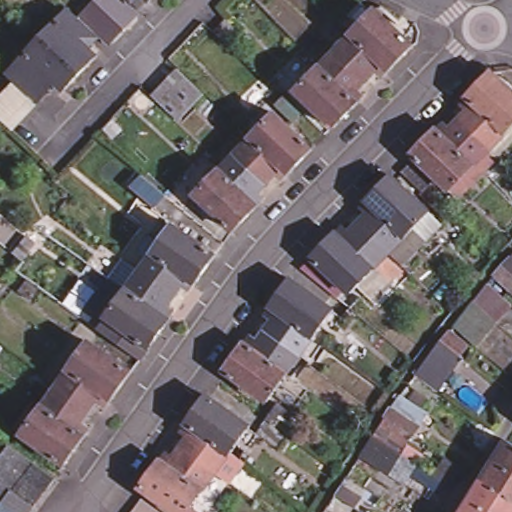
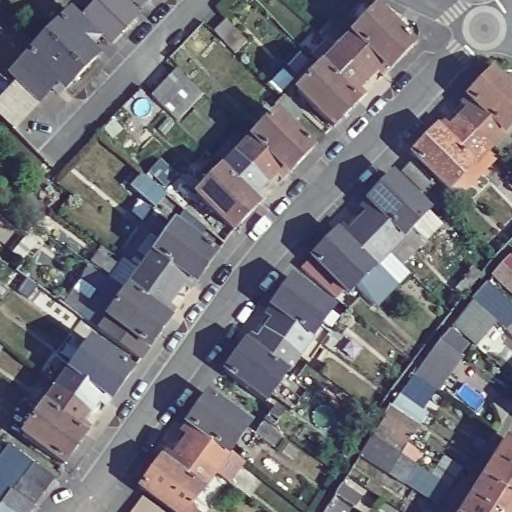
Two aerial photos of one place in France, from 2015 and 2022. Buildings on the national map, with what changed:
unchanged [(143,8),(134,1),(127,9),(116,0),(149,0),(143,8)]
unchanged [(71,4),(101,32),(93,40),(99,47),(83,64),(47,29),(71,4)]
unchanged [(373,7),(409,44),(384,69),(378,63),(363,78),(332,49),(373,7)]
unchanged [(226,20),(247,41),(234,57),(212,35),(226,20)]
unchanged [(11,65),(20,55),(46,28),(47,29),(83,64),(67,81),(59,73),(49,83),(41,92),(11,65)]
unchanged [(292,90),(332,49),(363,78),(346,94),(354,101),(329,125),(292,90)]
unchanged [(444,187),(407,152),(431,127),(438,133),(453,118),(469,101),(463,94),(487,69),(512,94),(512,117),(483,147),(490,153),(474,170),(452,193),(445,186),(444,187)]
unchanged [(174,72),(201,98),(188,111),(175,125),(148,100),(161,86),(174,72)]
unchanged [(5,85),(15,74),(38,96),(28,106),(15,120),(0,106),(0,90),(5,85)]
unchanged [(287,121),(269,105),(275,99),(279,94),(296,111),(287,121)]
unchanged [(272,111),(309,147),(283,173),(276,166),(261,182),(231,153),(272,111)]
unchanged [(191,193),(231,153),(261,182),(246,198),(253,204),(228,228),(191,193)]
unchanged [(419,184),(416,188),(395,169),(407,158),(427,176),(419,184)]
unchanged [(386,174),(423,210),(384,250),(354,221),(369,205),(363,198),(386,174)]
unchanged [(166,199),(156,213),(131,192),(141,178),(166,199)]
unchanged [(298,265),(307,256),(331,230),(339,237),(354,221),(384,250),(345,291),(339,285),(331,294),(298,265)]
unchanged [(108,316),(127,289),(116,283),(108,277),(123,257),(128,261),(131,263),(141,270),(174,223),(216,253),(194,282),(186,276),(174,294),(161,312),(169,318),(148,346),(139,358),(99,330),(109,317),(108,316)]
unchanged [(22,266),(13,259),(26,240),(36,247),(22,266)]
unchanged [(494,278),(503,267),(510,259),(512,261),(512,295),(506,288),(494,278)]
unchanged [(269,309),(261,303),(281,277),(324,307),(291,353),(256,328),(269,309)]
unchanged [(6,288),(9,290),(0,303),(0,283),(6,288)]
unchanged [(473,302),(488,284),(512,306),(498,324),(478,346),(453,326),(473,302)]
unchanged [(244,346),(256,328),(291,353),(257,399),(214,369),(236,340),(244,346)]
unchanged [(431,355),(434,350),(442,341),(449,331),(467,345),(459,355),(463,359),(452,372),(436,392),(414,377),(431,355)]
unchanged [(84,340),(126,370),(106,398),(98,392),(84,410),(51,385),(84,340)]
unchanged [(16,432),(51,385),(84,410),(71,428),(80,434),(60,462),(16,432)]
unchanged [(150,458),(158,463),(171,444),(184,426),(176,421),(196,392),(240,423),(221,448),(229,454),(228,456),(230,458),(223,467),(220,471),(223,473),(219,478),(206,469),(198,480),(181,503),(189,509),(187,512),(166,512),(129,486),(150,458)]
unchanged [(398,392),(409,400),(415,392),(426,400),(432,399),(436,402),(438,407),(438,411),(423,432),(419,429),(409,445),(422,454),(400,486),(358,457),(398,392)]
unchanged [(269,443),(248,428),(256,416),(269,399),(278,406),(266,423),(278,431),(269,443)]
unchanged [(512,445),(512,473),(493,461),(506,441),(512,445)]
unchanged [(9,445),(34,465),(55,481),(44,495),(33,510),(32,512),(0,512),(0,458),(9,445)]
unchanged [(512,500),(481,480),(493,461),(512,473),(512,500)]
unchanged [(512,500),(512,512),(490,512),(469,498),(481,480),(512,500)]
unchanged [(341,485),(361,498),(353,508),(334,496),(341,485)]
unchanged [(132,496),(152,512),(127,512),(123,508),(132,496)]
unchanged [(490,512),(460,512),(469,498),(490,512)]
unchanged [(125,512),(120,512),(121,509),(125,512)]

